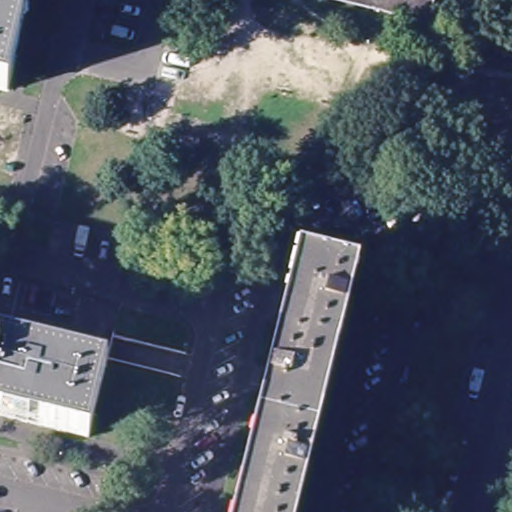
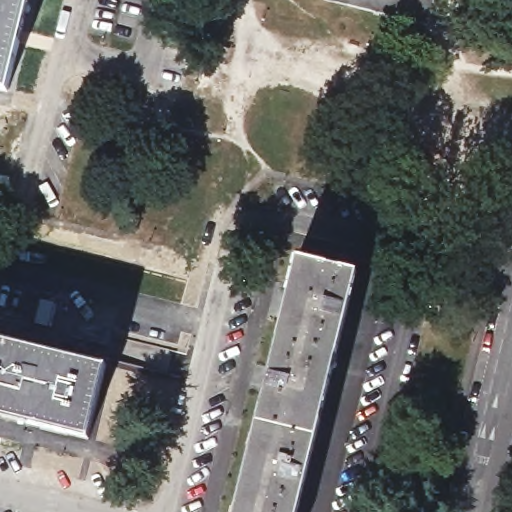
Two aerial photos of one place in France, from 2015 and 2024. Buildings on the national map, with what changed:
unchanged [(6,97),(0,95),(0,0),(31,0),(6,97)]
unchanged [(404,8),(395,4),(389,2),(382,0),(381,0),(406,0),(404,8)]
unchanged [(298,512),(235,512),(297,260),(357,275),(298,512)]
unchanged [(68,349),(76,351),(77,348),(111,356),(107,371),(89,443),(0,422),(0,345),(65,361),(68,349)]

